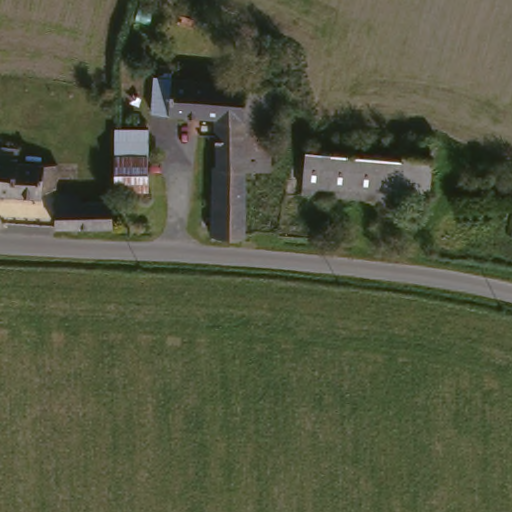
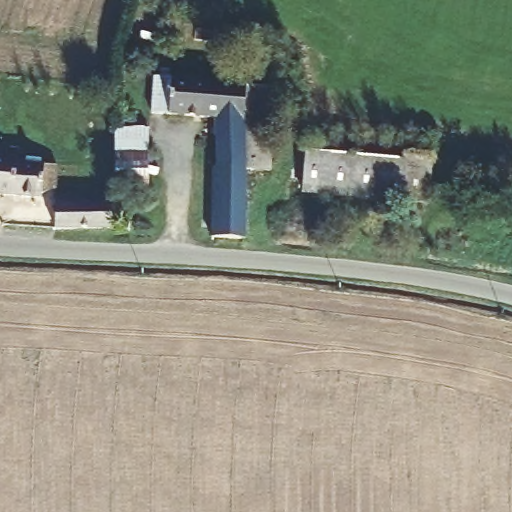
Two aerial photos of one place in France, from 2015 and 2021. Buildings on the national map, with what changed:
unchanged [(252,83),(249,100),(251,167),(250,234),(217,231),(218,166),(222,161),(222,115),(158,111),(160,76),(252,83)]
unchanged [(249,100),(252,83),(277,85),(276,167),(251,167),(249,100)]
unchanged [(147,130),(147,190),(118,191),(117,130),(147,130)]
unchanged [(46,188),(45,194),(0,189),(0,155),(1,147),(23,148),(22,163),(46,167),(61,165),(61,185),(46,188)]
unchanged [(402,203),(401,216),(381,216),(381,200),(305,193),(309,149),(408,159),(433,161),(427,204),(402,203)]
unchanged [(61,223),(60,190),(87,190),(88,199),(117,198),(119,224),(61,223)]

